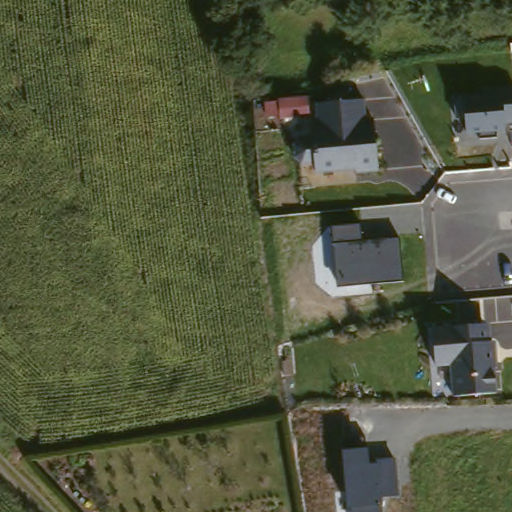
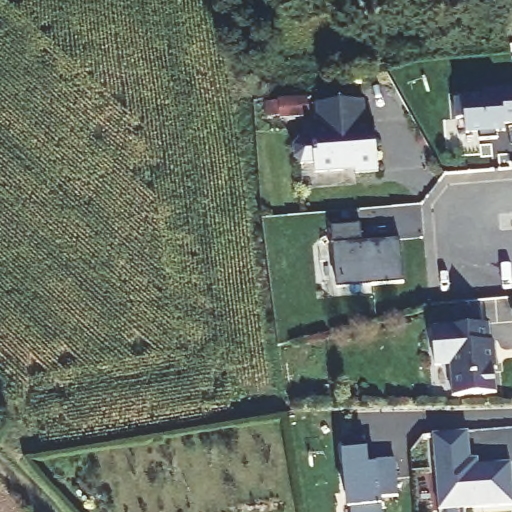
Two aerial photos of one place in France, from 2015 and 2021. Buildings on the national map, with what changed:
unchanged [(456,119),(454,99),(480,99),(479,93),(512,89),(512,123),(503,123),(503,129),(495,130),(495,139),(481,139),(478,132),(467,134),(467,119),(456,119)]
unchanged [(308,122),(319,123),(317,106),(360,101),(362,117),(377,116),(383,175),(354,176),(353,169),(315,173),(308,122)]
unchanged [(332,226),(361,223),(363,240),(399,240),(406,282),(333,283),(332,226)]
unchanged [(429,329),(495,324),(500,390),(452,397),(449,364),(432,363),(429,329)]
new [(468,432),(470,459),(478,459),(478,466),(510,464),(512,491),(512,505),(439,510),(432,434),(468,432)]
unchanged [(399,496),(380,499),(381,512),(357,512),(357,508),(350,508),(342,453),(368,449),(370,464),(396,461),(399,496)]

